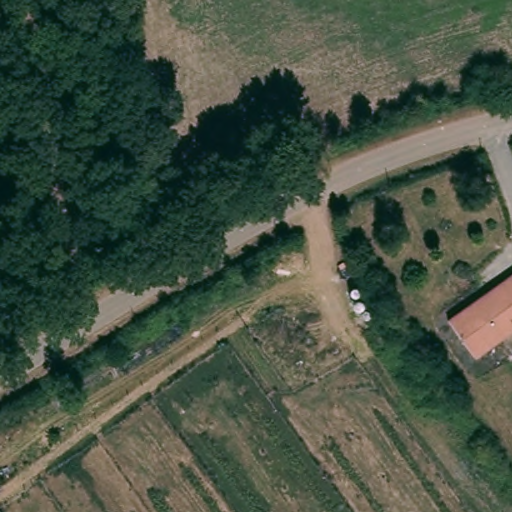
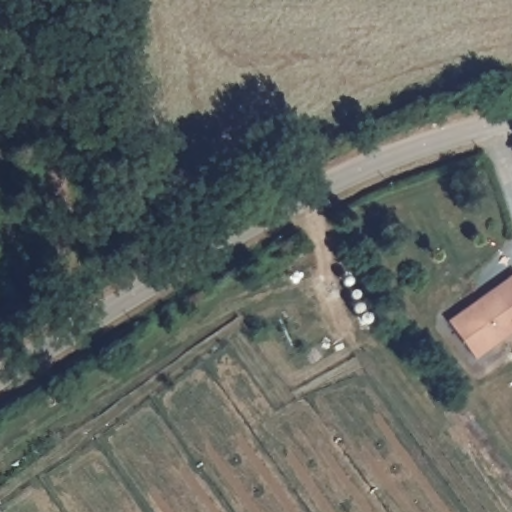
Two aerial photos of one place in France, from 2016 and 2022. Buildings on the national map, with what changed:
unchanged [(451,322),(512,282),(512,333),(475,357),(451,322)]

